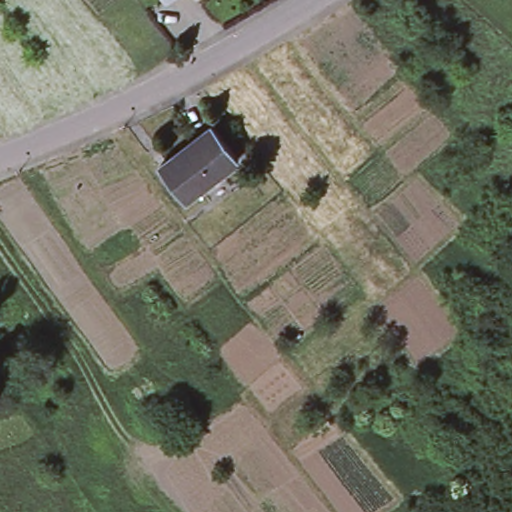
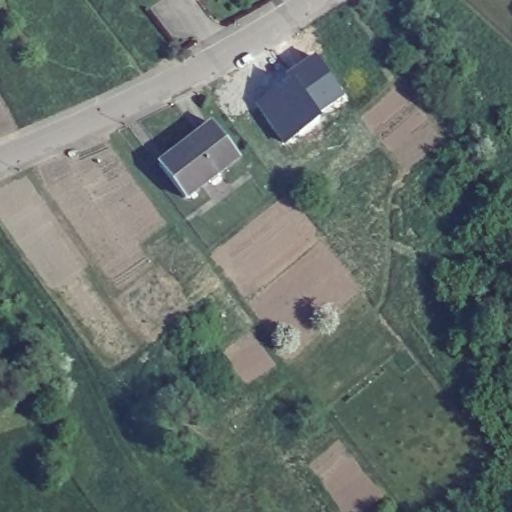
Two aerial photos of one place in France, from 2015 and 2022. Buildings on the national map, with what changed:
new [(292,73),(288,70),(318,53),(344,91),(321,106),(283,142),(260,104),(292,73)]
unchanged [(183,197),(176,187),(158,164),(159,162),(163,166),(186,149),(183,145),(212,123),(228,144),(238,155),(183,197)]

